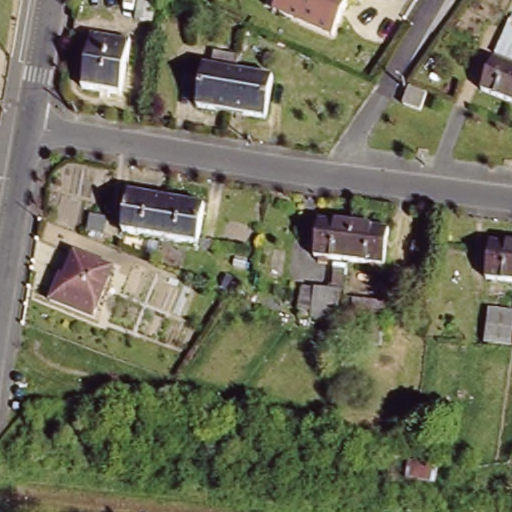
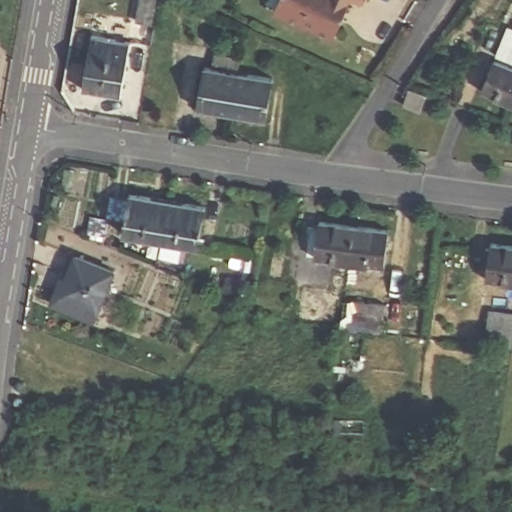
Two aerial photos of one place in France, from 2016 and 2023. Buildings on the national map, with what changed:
unchanged [(157,6),(154,26),(139,25),(142,4),(157,6)]
unchanged [(488,81),(501,49),(504,50),(511,34),(512,34),(512,91),(488,81)]
unchanged [(86,83),(93,41),(112,44),(112,36),(132,39),(122,90),(86,83)]
unchanged [(239,109),(205,103),(212,62),(246,68),(239,109)]
unchanged [(246,68),(281,74),(274,115),(239,109),(246,68)]
unchanged [(421,111),(406,105),(412,88),(428,95),(421,111)]
unchanged [(167,236),(130,230),(137,189),(175,196),(167,236)]
unchanged [(175,196),(212,202),(206,243),(167,236),(175,196)]
unchanged [(356,258),(322,254),(327,217),(361,222),(356,258)]
unchanged [(361,222),(395,226),(390,263),(356,258),(361,222)]
unchanged [(492,275),(497,239),(512,240),(512,278),(492,275)]
unchanged [(67,277),(79,250),(117,266),(102,301),(100,301),(94,316),(51,297),(61,274),(67,277)]
unchanged [(378,333),(379,326),(352,322),(355,300),(386,304),(382,333),(378,333)]
unchanged [(493,337),(497,306),(512,308),(512,339),(493,337)]

